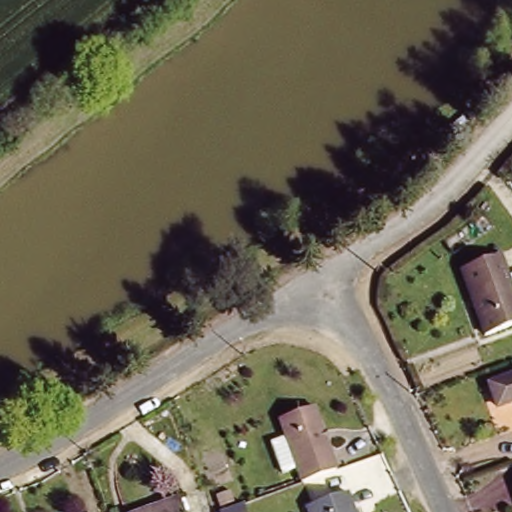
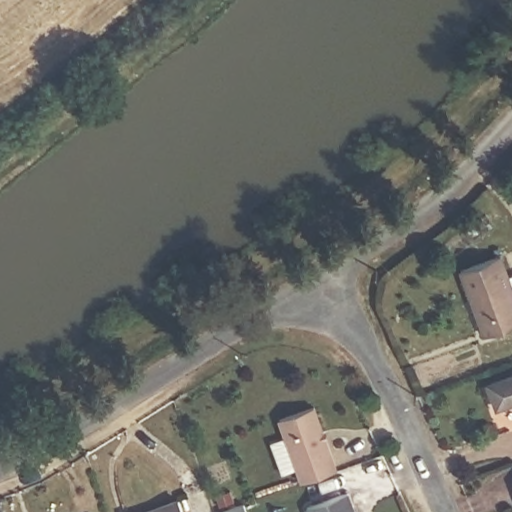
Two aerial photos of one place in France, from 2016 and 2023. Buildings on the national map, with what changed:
unchanged [(497,256),(505,277),(512,274),(512,325),(487,335),(460,272),(497,256)]
unchanged [(493,383),(512,376),(512,401),(502,405),(493,383)]
unchanged [(284,440),(298,435),(292,417),(324,405),(347,466),(314,478),(309,464),(295,469),(284,440)]
unchanged [(354,512),(308,512),(305,505),(346,490),(354,512)]
unchanged [(192,512),(151,512),(187,499),(192,512)]

